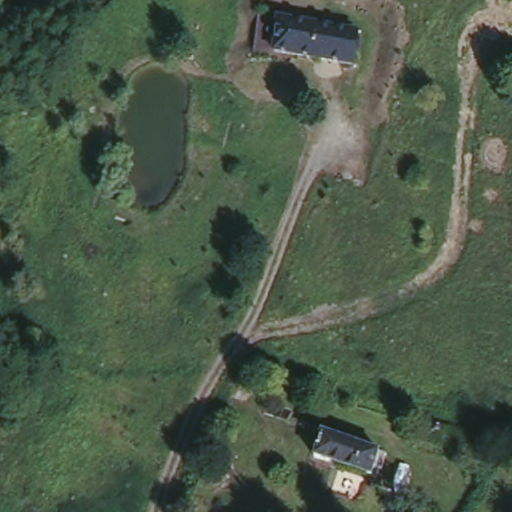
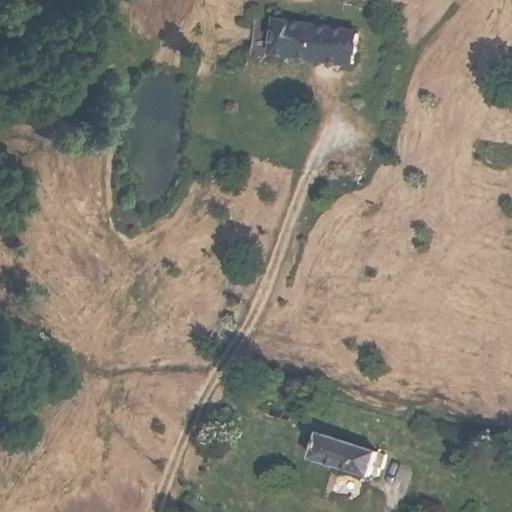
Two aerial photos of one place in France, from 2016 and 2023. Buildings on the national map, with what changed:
unchanged [(362,30),(358,70),(255,57),(262,17),(362,30)]
unchanged [(384,461),(376,459),(372,470),(316,451),(324,426),(381,445),(379,450),(387,452),(384,461)]

